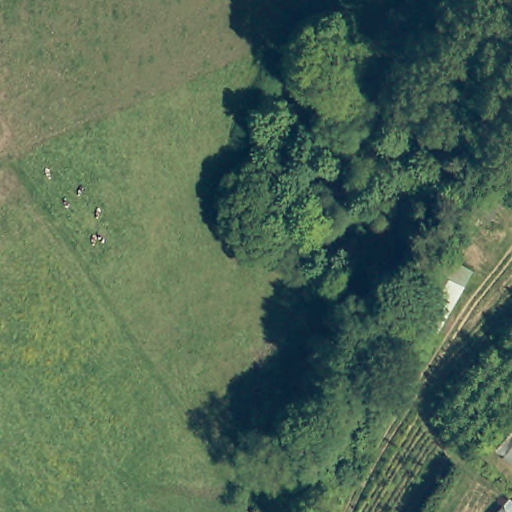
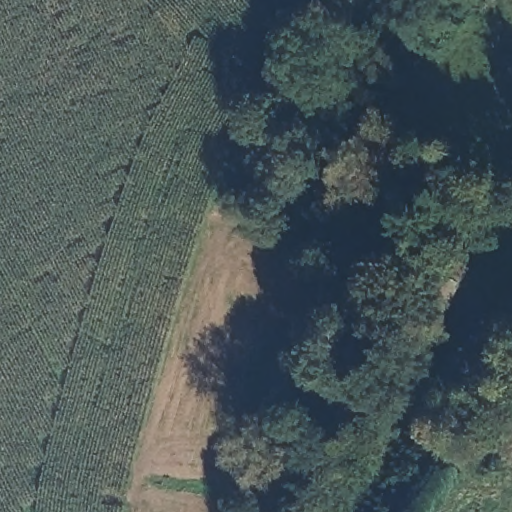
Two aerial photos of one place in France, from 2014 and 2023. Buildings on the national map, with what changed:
unchanged [(494,450),(512,430),(512,466),(494,450)]
unchanged [(512,500),(512,512),(497,512),(510,498),(512,500)]

